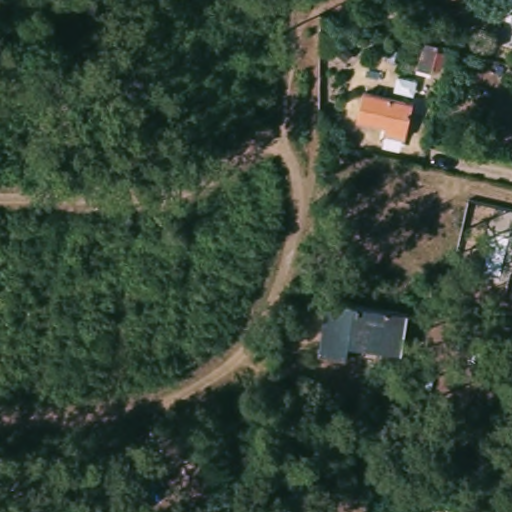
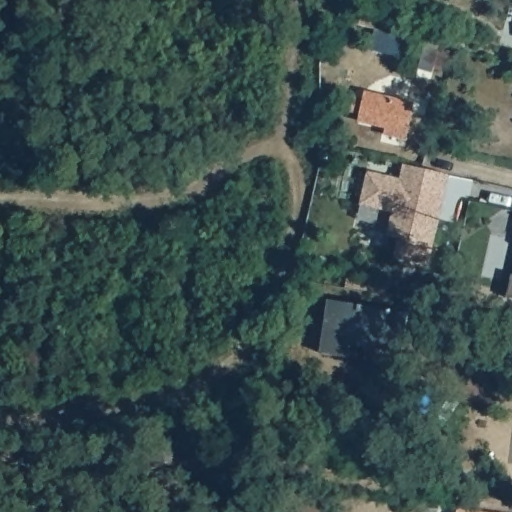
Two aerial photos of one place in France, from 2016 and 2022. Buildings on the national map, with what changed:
new [(380,30),(408,37),(404,54),(376,46),(380,30)]
unchanged [(438,44),(431,72),(416,68),(423,40),(438,44)]
unchanged [(382,134),(384,125),(355,119),(362,90),(402,100),(410,102),(408,111),(403,130),(401,139),(382,134)]
new [(397,177),(400,162),(446,173),(440,200),(437,212),(425,264),(391,256),(395,236),(384,233),(389,210),(357,202),(364,170),(397,177)]
unchanged [(506,293),(510,275),(512,275),(512,295),(506,293)]
unchanged [(397,310),(393,342),(348,335),(345,356),(318,352),(327,299),(397,310)]
unchanged [(511,512),(457,512),(458,505),(511,511),(511,512)]

